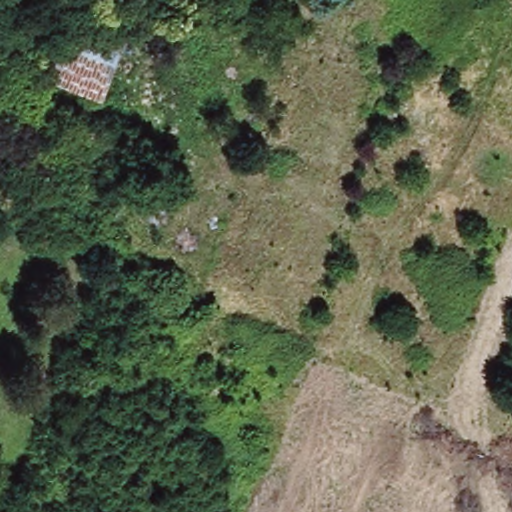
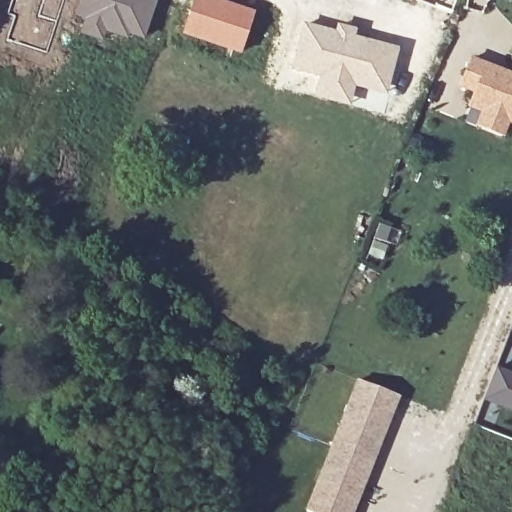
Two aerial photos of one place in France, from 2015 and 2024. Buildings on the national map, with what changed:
new [(78,0),(157,0),(141,44),(131,40),(129,44),(106,36),(104,42),(78,33),(83,21),(72,16),(78,0)]
new [(194,0),(221,0),(255,11),(240,55),(182,35),(194,0)]
new [(325,72),(297,64),(308,24),(400,48),(393,76),(389,91),(372,87),(357,83),(352,102),(319,94),(324,75),(325,72)]
unchanged [(116,56),(106,84),(57,66),(68,38),(116,56)]
unchanged [(512,73),(512,125),(510,124),(504,137),(476,127),(480,113),(468,108),(474,92),(459,87),(470,56),(512,73)]
new [(504,406),(486,399),(497,368),(512,374),(512,409),(504,406)]
new [(354,512),(307,512),(305,511),(358,379),(401,397),(354,512)]

